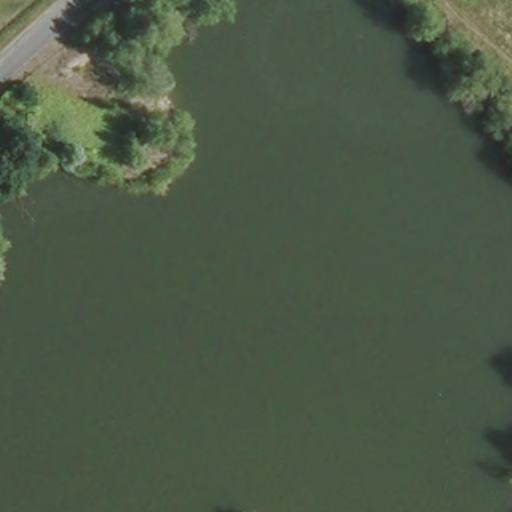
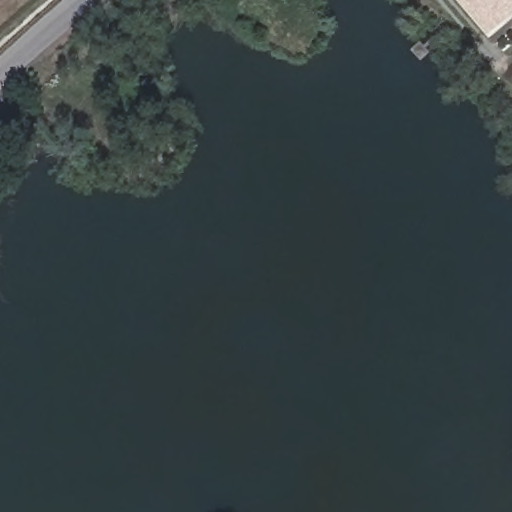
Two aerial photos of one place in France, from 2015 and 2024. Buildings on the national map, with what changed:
new [(461,0),(511,0),(512,1),(512,12),(487,32),(461,0)]

